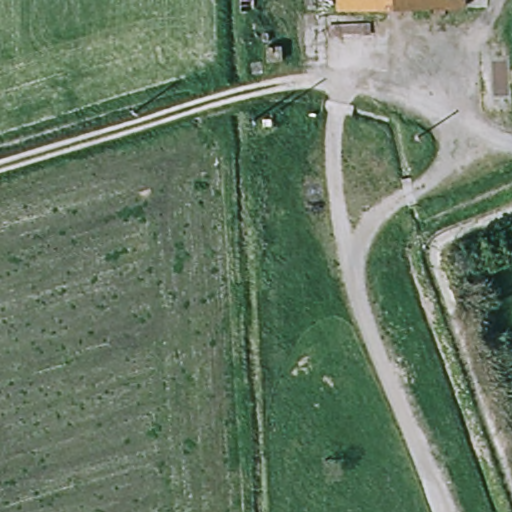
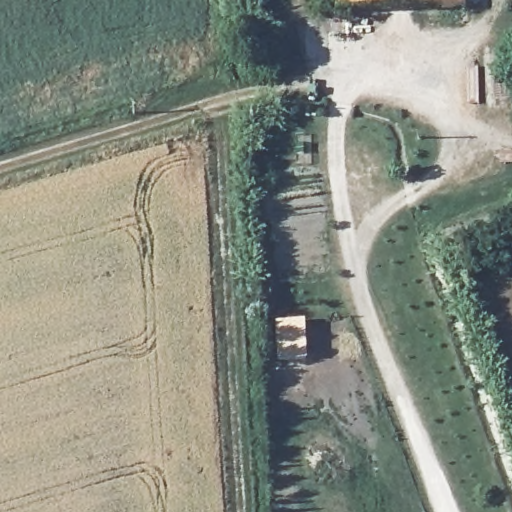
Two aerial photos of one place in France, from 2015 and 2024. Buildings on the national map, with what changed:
unchanged [(333,10),(333,0),(460,0),(460,9),(333,10)]
unchanged [(260,59),(265,70),(253,75),(249,63),(260,59)]

